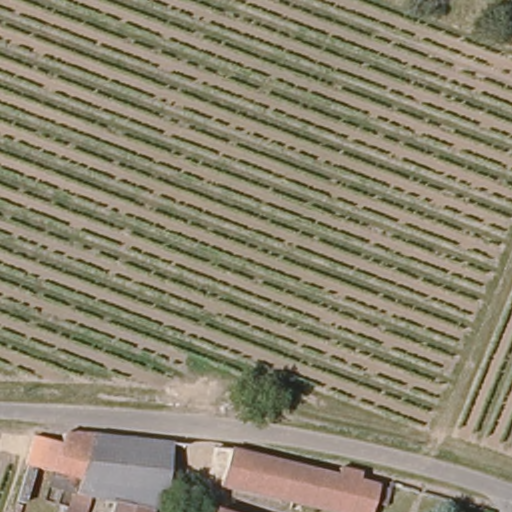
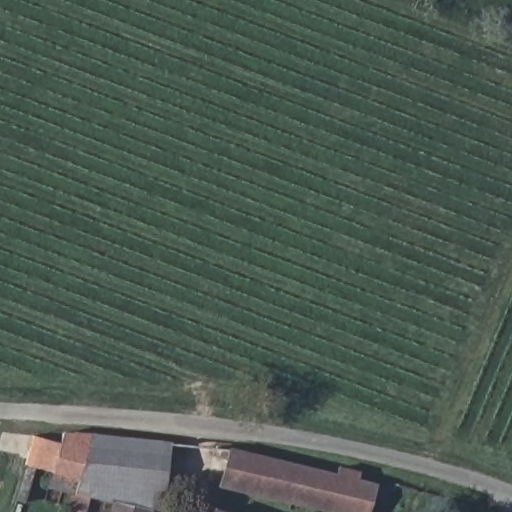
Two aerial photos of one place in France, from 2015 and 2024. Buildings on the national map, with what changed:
unchanged [(80,490),(93,493),(88,512),(70,512),(77,490),(57,483),(60,473),(38,470),(29,502),(22,500),(31,466),(24,465),(26,457),(32,435),(33,433),(55,438),(61,440),(65,430),(96,436),(80,490)]
unchanged [(93,493),(80,490),(96,436),(169,443),(165,511),(156,508),(118,499),(93,493)]
unchanged [(335,480),(338,470),(360,476),(360,478),(357,486),(388,495),(385,510),(368,505),(367,512),(326,512),(218,485),(227,453),(335,480)]
unchanged [(156,508),(156,512),(115,512),(118,499),(156,508)]
unchanged [(210,508),(221,512),(209,512),(210,508)]

